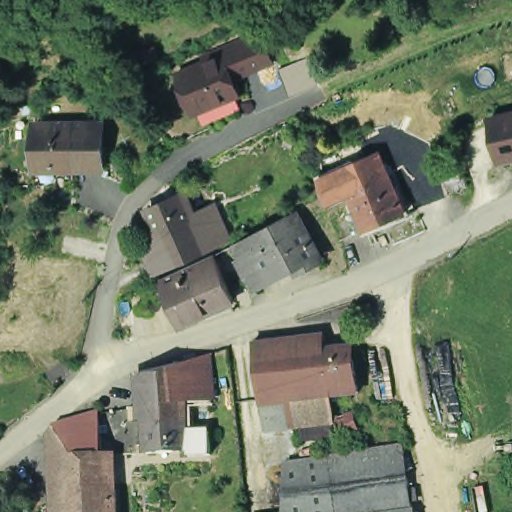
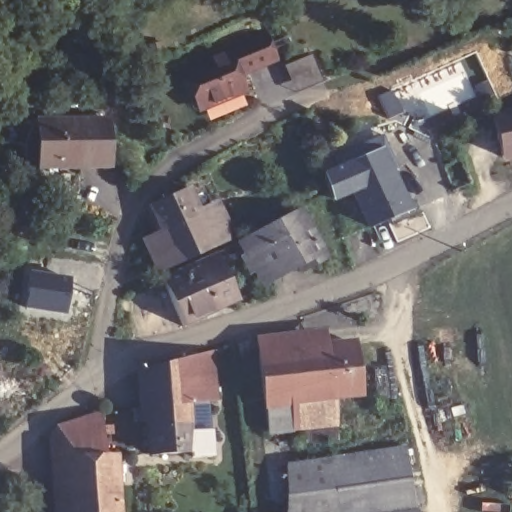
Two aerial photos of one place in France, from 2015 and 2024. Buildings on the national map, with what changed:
unchanged [(279,57),(243,74),(250,89),(205,110),(187,72),(213,60),(211,55),(217,52),(267,30),(279,57)]
unchanged [(144,47),(158,40),(163,51),(148,57),(144,47)]
unchanged [(495,118),(512,114),(512,155),(503,157),(495,118)]
unchanged [(40,174),(40,165),(40,162),(38,120),(107,117),(108,165),(109,168),(77,169),(77,173),(40,174)]
unchanged [(455,136),(472,183),(455,190),(437,143),(455,136)]
unchanged [(332,174),(390,150),(399,171),(360,188),(338,196),(332,174)]
unchanged [(399,171),(415,212),(376,229),(360,188),(399,171)]
unchanged [(155,278),(140,244),(160,234),(147,209),(185,192),(197,217),(213,209),(230,243),(212,251),(175,268),(155,278)]
unchanged [(297,275),(295,270),(260,287),(253,272),(247,275),(242,264),(248,261),(239,244),(296,214),(321,263),(297,275)]
unchanged [(232,302),(177,326),(157,284),(211,258),(232,302)]
new [(27,270),(68,278),(62,314),(21,307),(27,270)]
unchanged [(255,340),(324,332),(323,323),(363,320),(364,339),(354,340),(360,399),(337,403),(340,430),(258,440),(255,340)]
unchanged [(142,388),(141,369),(182,359),(210,353),(214,400),(186,403),(187,425),(146,428),(142,388)]
unchanged [(59,464),(53,464),(50,436),(92,421),(95,463),(59,464)]
unchanged [(212,459),(190,460),(190,453),(147,456),(146,428),(187,425),(188,436),(210,435),(212,459)]
unchanged [(287,466),(410,446),(417,511),(418,512),(286,512),(287,466)]
unchanged [(59,464),(95,463),(100,463),(108,463),(110,490),(110,512),(62,512),(59,464)]

